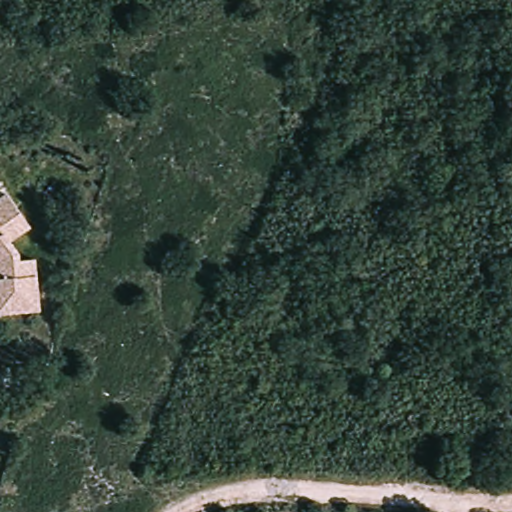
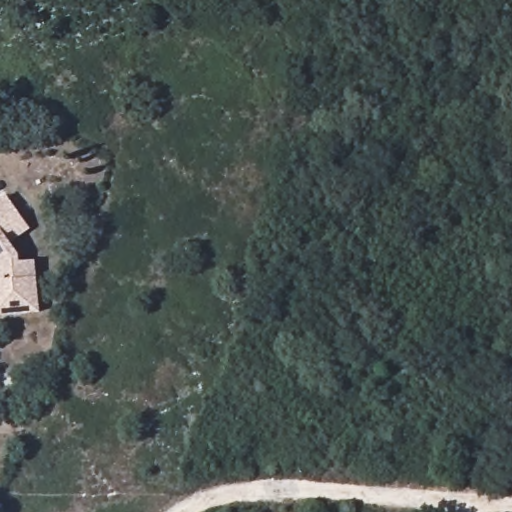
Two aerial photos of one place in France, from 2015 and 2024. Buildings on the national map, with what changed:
unchanged [(23,222),(6,242),(16,251),(18,259),(33,253),(44,298),(4,314),(0,297),(0,200),(23,222)]

